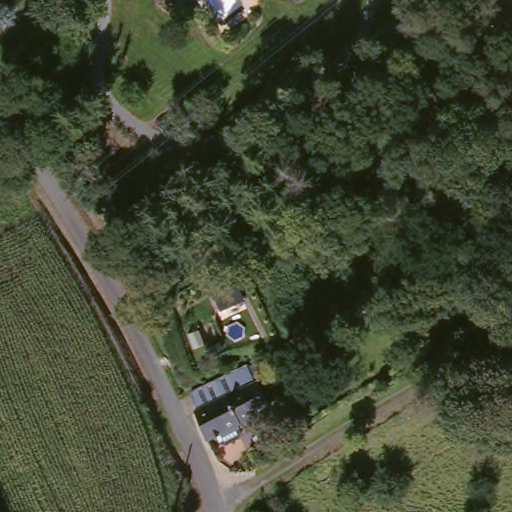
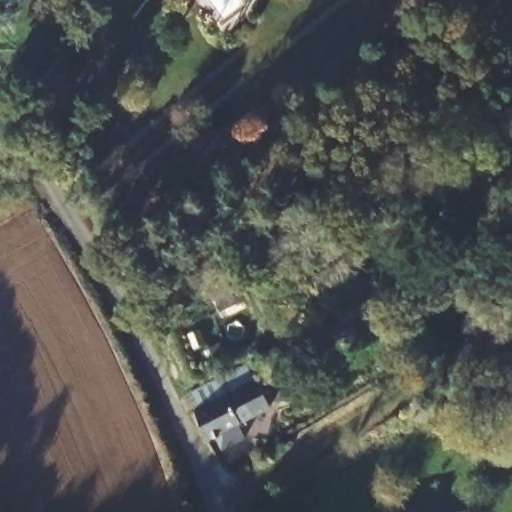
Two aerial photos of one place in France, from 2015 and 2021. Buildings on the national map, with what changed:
unchanged [(244,442),(237,441),(232,433),(222,438),(216,428),(210,415),(204,396),(259,363),(267,381),(267,382),(271,380),(284,406),(270,413),(255,421),(260,431),(257,437),(244,442)]

